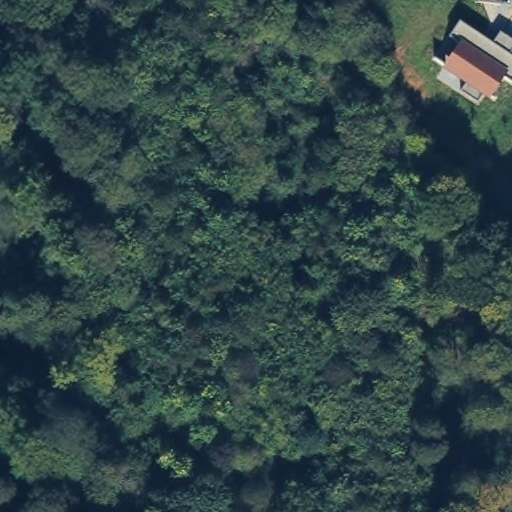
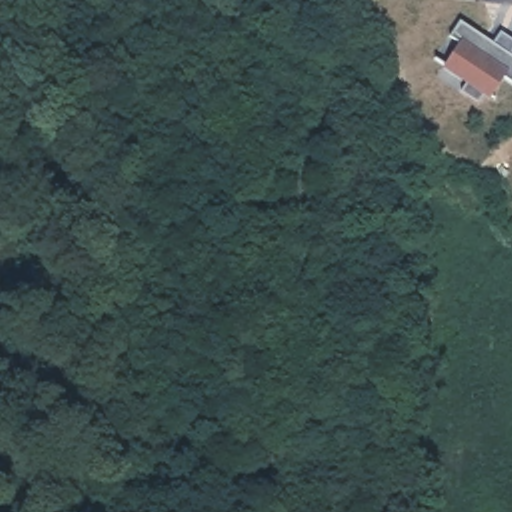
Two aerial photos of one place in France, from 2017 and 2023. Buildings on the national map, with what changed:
unchanged [(502,77),(492,94),(487,92),(480,103),(462,91),(467,82),(445,64),(457,44),(451,39),(460,22),(493,43),(500,32),(512,40),(512,49),(509,54),(512,56),(512,82),(511,83),(502,77)]

